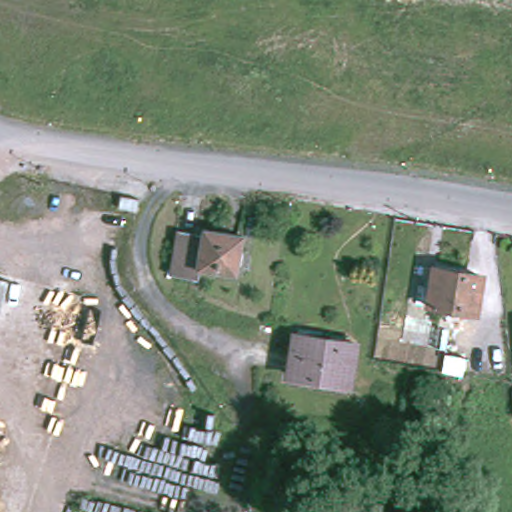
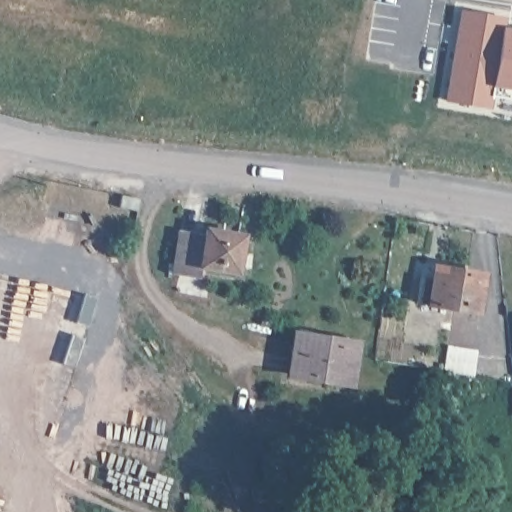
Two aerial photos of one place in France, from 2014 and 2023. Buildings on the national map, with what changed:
new [(502,27),(512,29),(512,101),(490,98),(488,110),(442,101),(459,9),(505,16),(502,27)]
unchanged [(202,236),(204,227),(245,233),(239,275),(199,269),(199,278),(170,273),(177,230),(202,236)]
unchanged [(435,268),(482,276),(475,313),(430,305),(435,268)]
unchanged [(290,374),(296,335),(357,344),(350,384),(290,374)]

